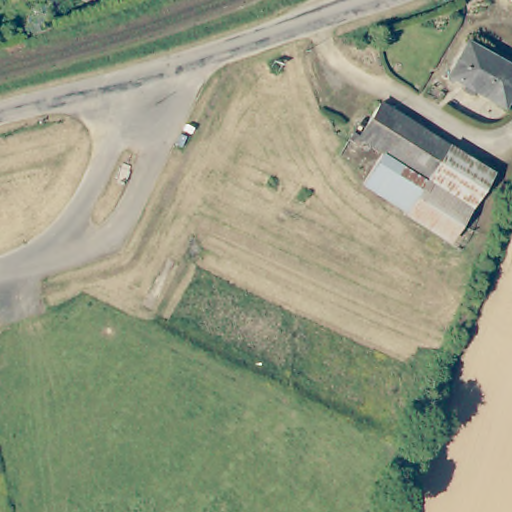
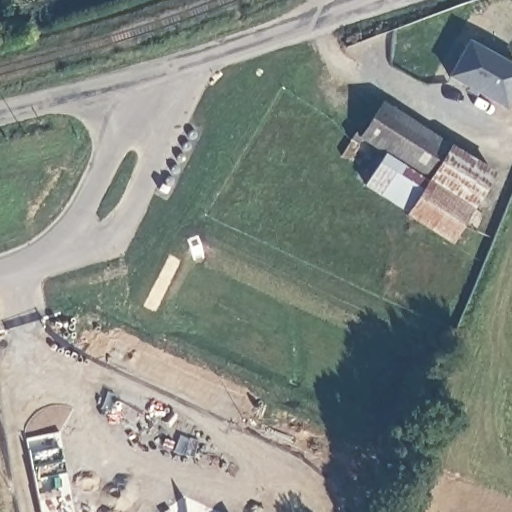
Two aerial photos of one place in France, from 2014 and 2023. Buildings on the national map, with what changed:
unchanged [(26,35),(36,0),(54,0),(42,31),(26,35)]
unchanged [(512,94),(505,108),(449,77),(467,43),(512,68),(512,94)]
unchanged [(363,137),(386,104),(497,174),(455,243),(410,217),(412,213),(432,182),(387,154),(363,137)]
unchanged [(432,182),(412,213),(368,185),(387,154),(432,182)]

